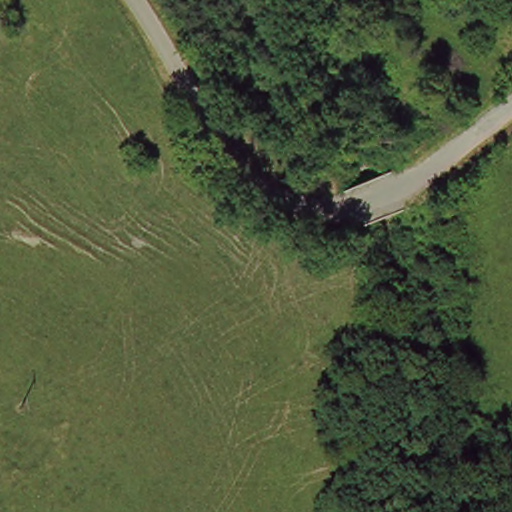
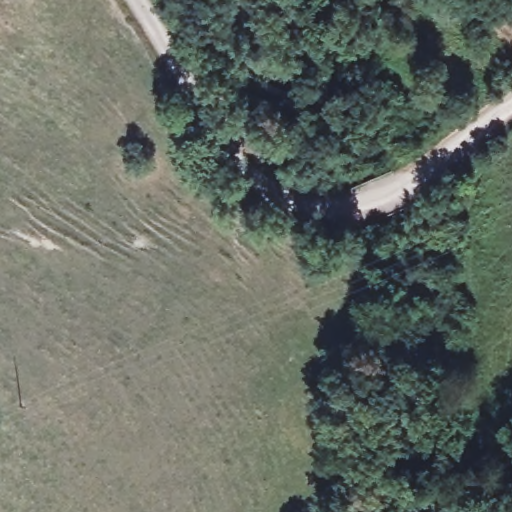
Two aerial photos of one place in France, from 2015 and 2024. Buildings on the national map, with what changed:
[]

